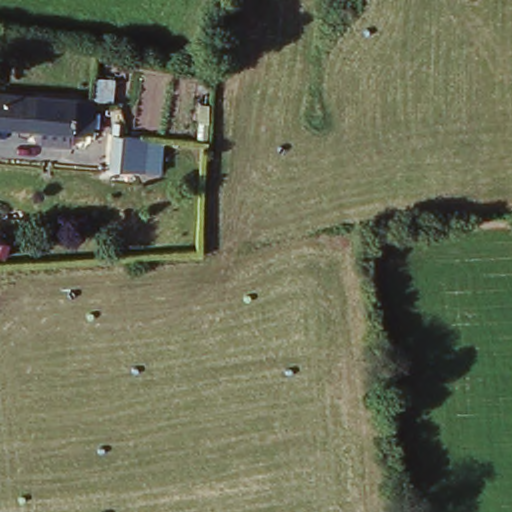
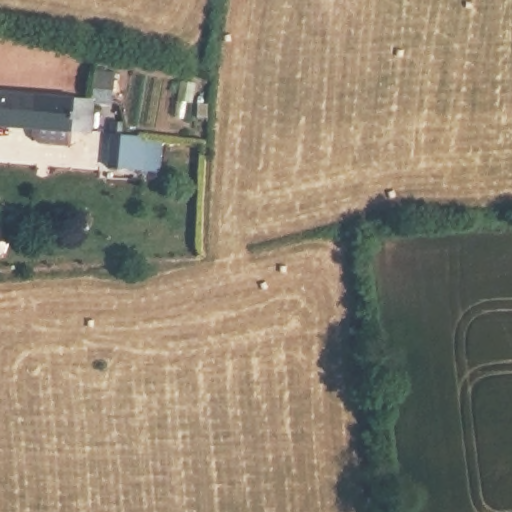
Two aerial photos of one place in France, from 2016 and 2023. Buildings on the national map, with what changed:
unchanged [(88,98),(89,131),(0,134),(0,100),(88,98)]
unchanged [(110,134),(141,138),(164,141),(161,172),(139,170),(108,166),(110,134)]

